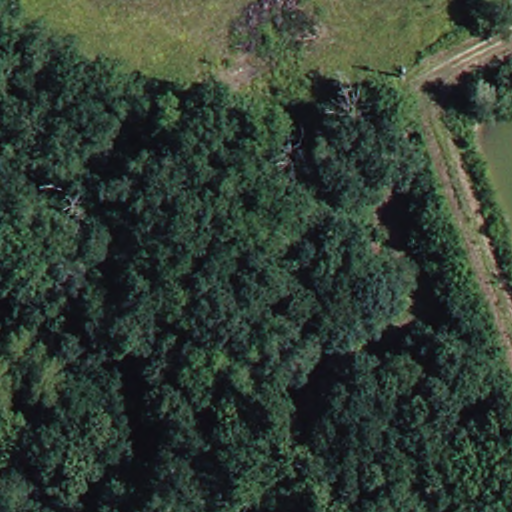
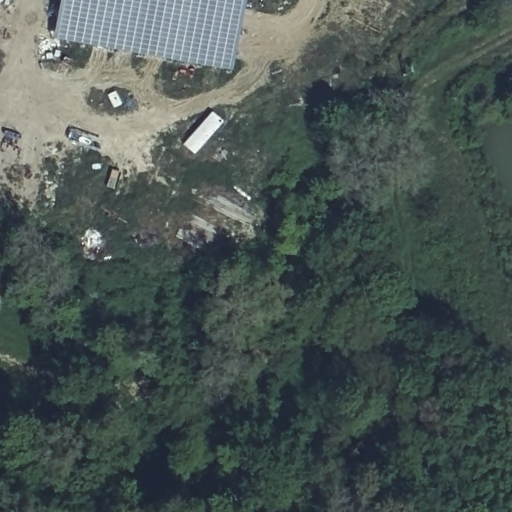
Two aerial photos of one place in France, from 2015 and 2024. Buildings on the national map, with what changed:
new [(228,66),(67,36),(74,0),(241,0),(228,66)]
unchanged [(361,509),(363,510),(362,512),(322,512),(324,507),(331,496),(361,509)]

